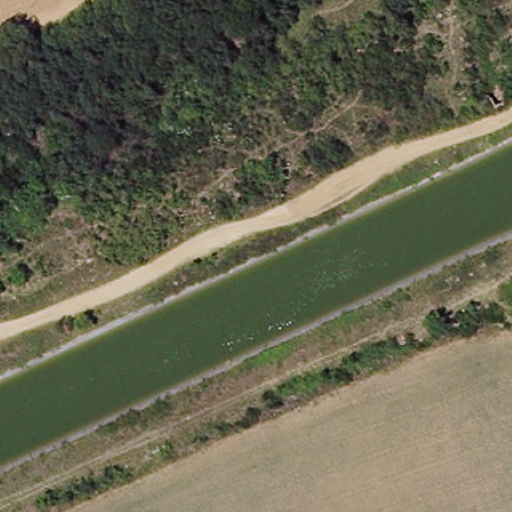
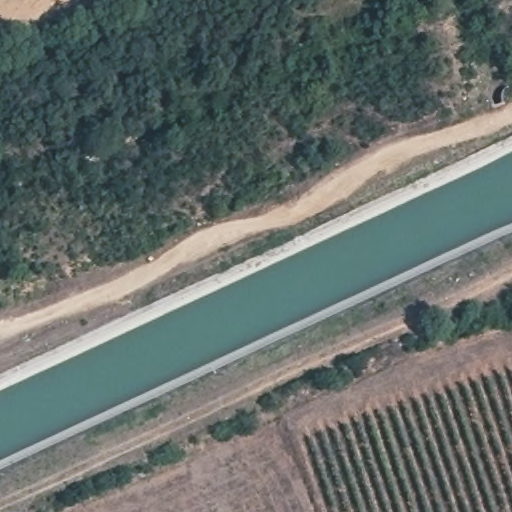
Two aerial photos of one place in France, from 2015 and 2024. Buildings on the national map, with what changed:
[]

